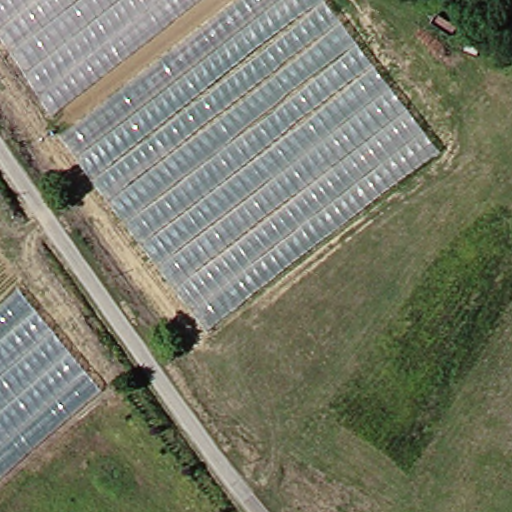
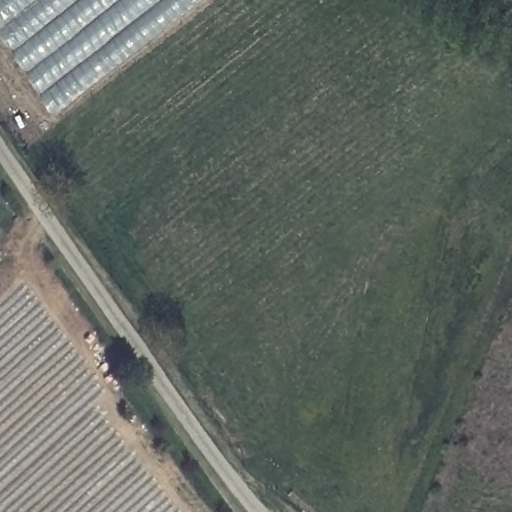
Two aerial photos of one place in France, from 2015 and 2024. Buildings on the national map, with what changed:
unchanged [(0,0),(201,0),(51,117),(0,39),(0,0)]
demolished [(240,0),(328,0),(443,150),(207,331),(57,137),(240,0)]
demolished [(0,307),(0,262),(21,288),(0,307)]
unchanged [(0,480),(0,307),(21,288),(106,387),(0,480)]

